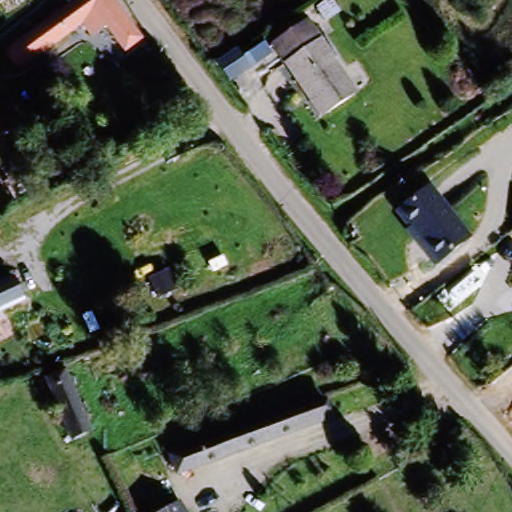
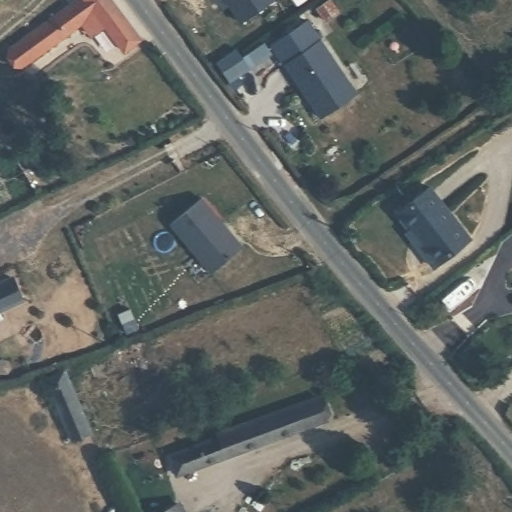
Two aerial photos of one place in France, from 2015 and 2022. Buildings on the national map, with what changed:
unchanged [(113,0),(142,39),(122,51),(116,43),(111,36),(105,29),(91,39),(82,26),(46,49),(22,65),(10,47),(80,0),(113,0)]
unchanged [(267,44),(302,17),(356,86),(321,114),(267,44)]
unchanged [(247,70),(228,82),(216,65),(233,52),(247,70)]
unchanged [(427,189),(470,242),(434,271),(417,251),(421,247),(395,215),(427,189)]
new [(245,249),(214,274),(174,225),(205,200),(245,249)]
unchanged [(10,278),(20,300),(0,309),(0,283),(10,278)]
unchanged [(57,371),(86,435),(69,442),(40,379),(57,371)]
unchanged [(326,419),(178,471),(170,446),(318,395),(326,419)]
unchanged [(185,502),(190,512),(165,512),(185,502)]

